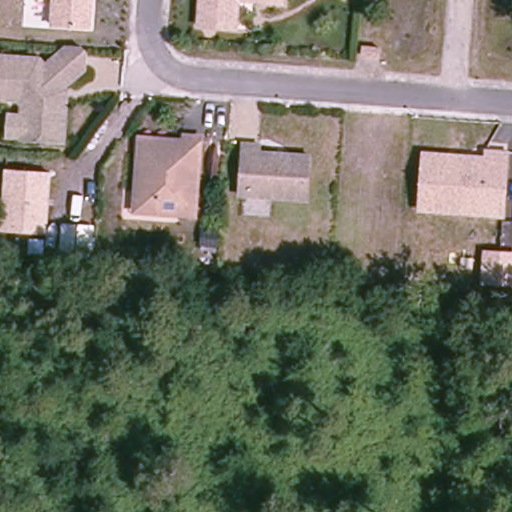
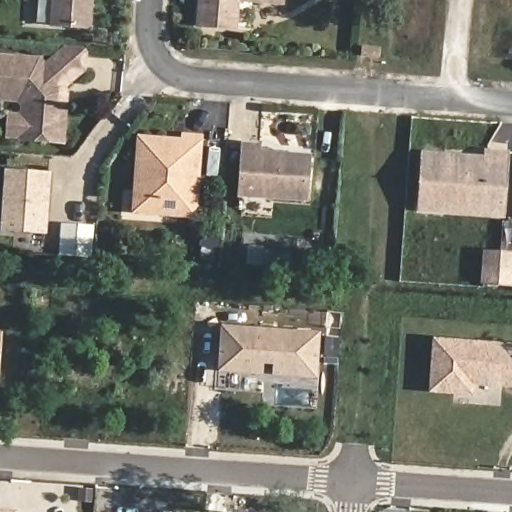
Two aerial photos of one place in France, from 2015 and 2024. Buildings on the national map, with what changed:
unchanged [(47,27),(49,0),(94,0),(92,30),(47,27)]
unchanged [(198,26),(199,0),(237,0),(237,27),(198,26)]
unchanged [(254,0),(263,0),(263,1),(254,0)]
demolished [(371,37),(370,47),(352,45),(353,35),(371,37)]
unchanged [(382,47),(382,57),(364,55),(364,45),(382,47)]
unchanged [(8,117),(21,117),(22,107),(18,102),(0,101),(0,57),(38,61),(39,67),(45,67),(67,47),(80,49),(85,54),(84,72),(61,94),(63,96),(63,104),(66,109),(65,145),(20,142),(20,139),(7,139),(8,117)]
unchanged [(193,217),(175,215),(176,200),(160,199),(159,214),(132,211),(138,139),(183,143),(183,137),(200,139),(193,217)]
unchanged [(258,142),(258,150),(308,154),(306,198),(239,192),(242,142),(258,142)]
unchanged [(416,206),(420,151),(484,157),(484,149),(504,151),(499,214),(479,212),(440,209),(416,206)]
unchanged [(47,234),(0,231),(0,217),(4,169),(52,172),(47,234)]
unchanged [(506,286),(475,283),(478,254),(508,257),(506,286)]
new [(266,330),(281,331),(321,335),(318,377),(278,373),(279,362),(264,361),(263,372),(224,368),(227,327),(266,330)]
new [(1,376),(0,376),(0,332),(5,332),(1,376)]
new [(433,391),(437,339),(512,345),(512,386),(499,385),(474,383),(473,394),(433,391)]

